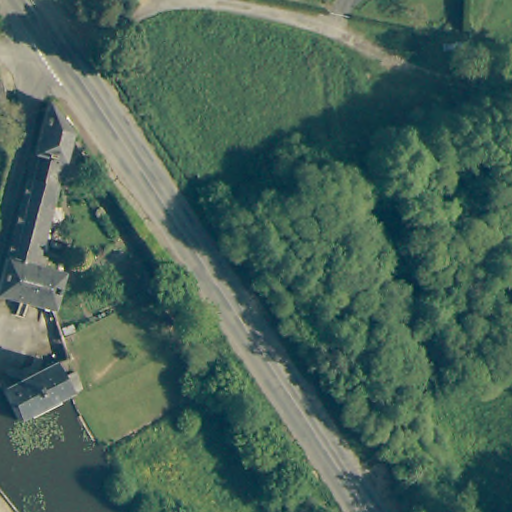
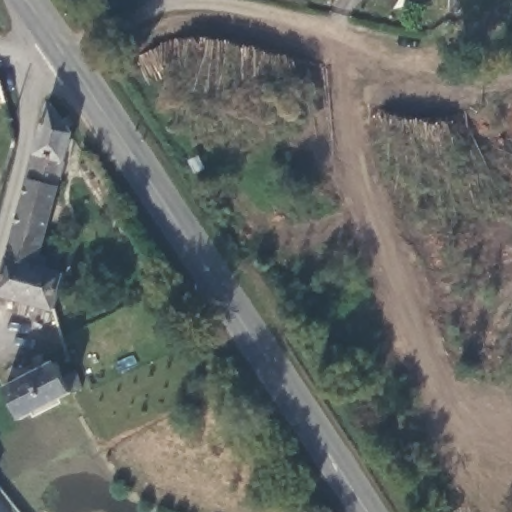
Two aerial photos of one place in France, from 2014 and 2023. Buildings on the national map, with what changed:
unchanged [(0,103),(0,83),(5,103),(0,103)]
unchanged [(51,106),(74,139),(59,194),(29,185),(51,106)]
unchanged [(59,194),(44,259),(53,262),(50,276),(64,279),(55,312),(0,300),(0,294),(29,185),(59,194)]
unchanged [(61,381),(69,377),(75,391),(73,392),(68,395),(14,421),(2,393),(55,367),(61,381)]

